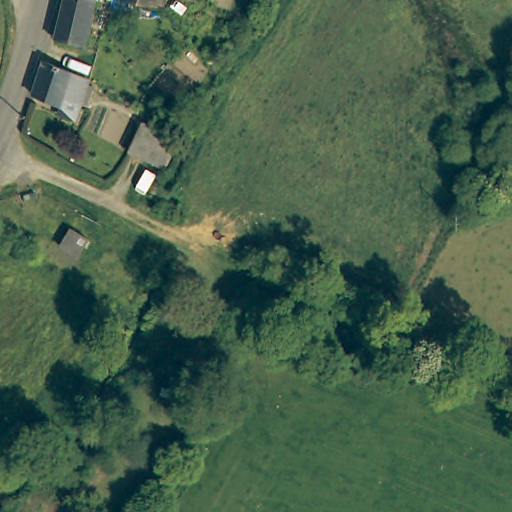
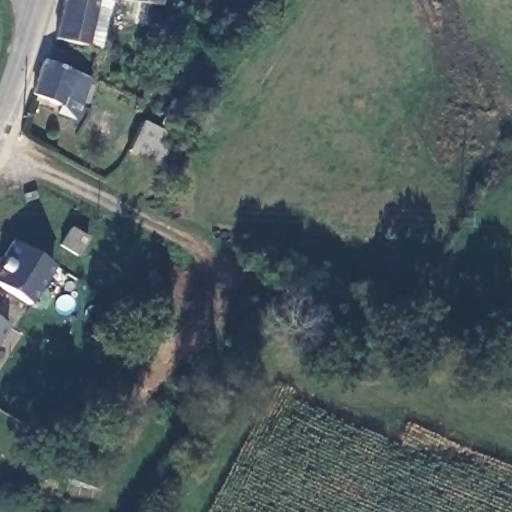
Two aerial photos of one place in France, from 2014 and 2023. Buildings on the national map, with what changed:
unchanged [(51,55),(65,0),(96,0),(77,63),(51,55)]
unchanged [(156,8),(122,0),(159,0),(156,8)]
unchanged [(64,94),(61,103),(35,95),(45,59),(49,61),(92,75),(90,79),(83,100),(64,94)]
unchanged [(164,164),(155,160),(129,149),(143,118),(169,131),(178,135),(164,164)]
unchanged [(65,225),(85,236),(76,252),(56,241),(65,225)]
new [(53,266),(29,302),(0,285),(0,261),(11,240),(53,266)]
new [(0,339),(0,321),(8,326),(0,339)]

